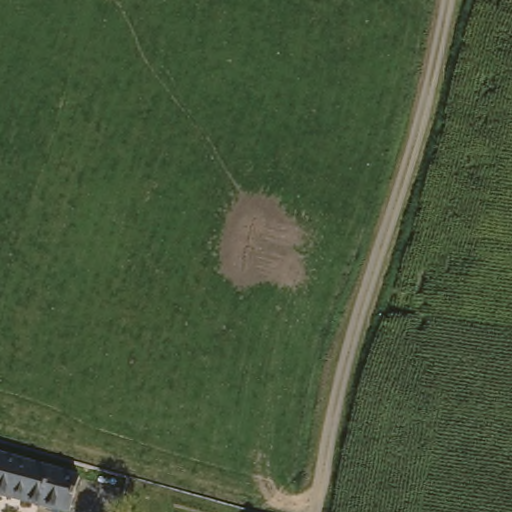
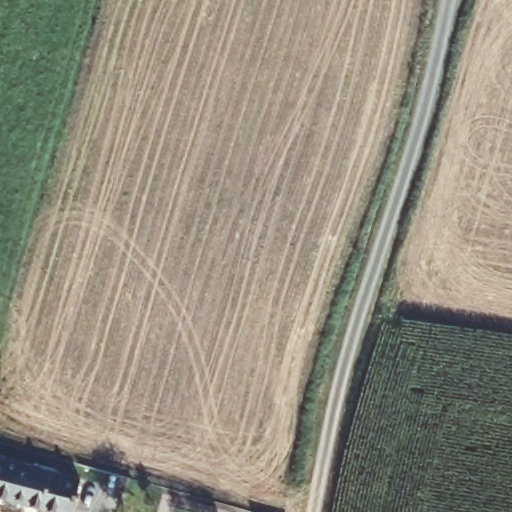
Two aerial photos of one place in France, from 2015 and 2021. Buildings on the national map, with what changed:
unchanged [(19,464),(10,498),(0,495),(0,459),(19,464)]
unchanged [(79,482),(71,512),(58,512),(10,498),(19,464),(79,482)]

